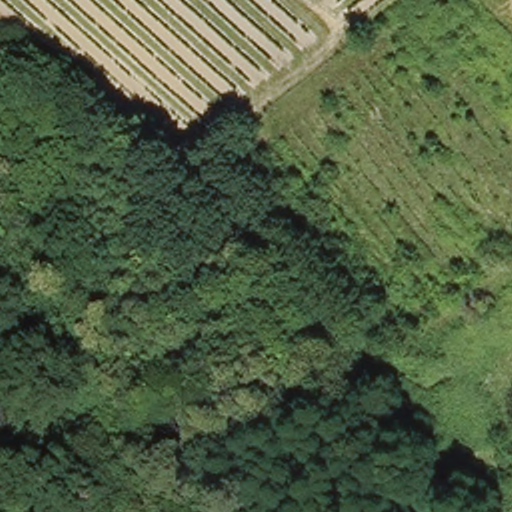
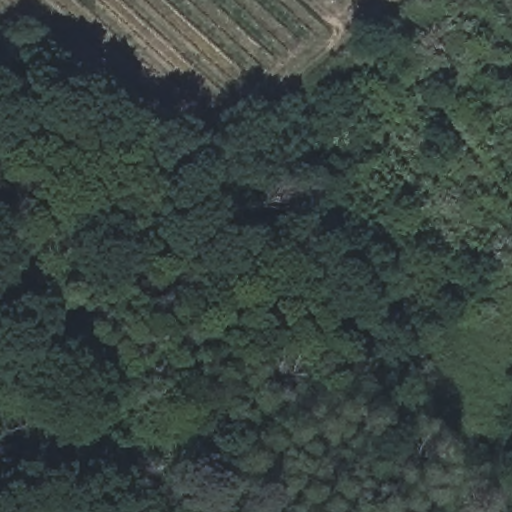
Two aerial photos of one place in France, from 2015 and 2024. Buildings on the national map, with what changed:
[]

